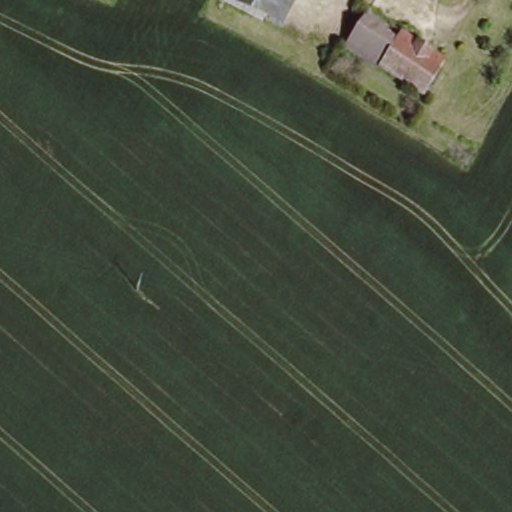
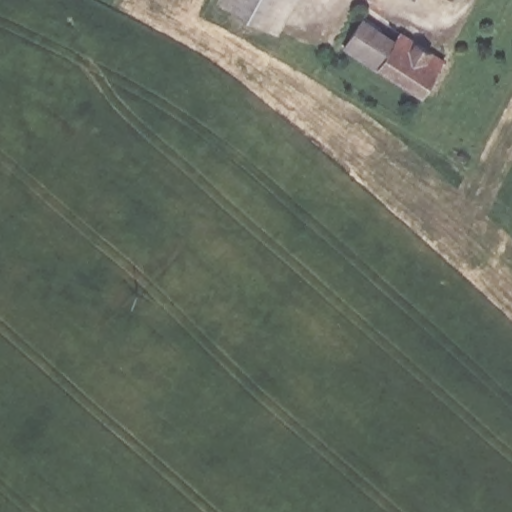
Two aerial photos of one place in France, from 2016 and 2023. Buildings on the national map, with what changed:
unchanged [(221,5),(224,0),(299,0),(279,35),(221,5)]
unchanged [(439,0),(448,0),(445,4),(439,0)]
unchanged [(425,99),(352,52),(371,23),(402,42),(407,35),(449,62),(425,99)]

